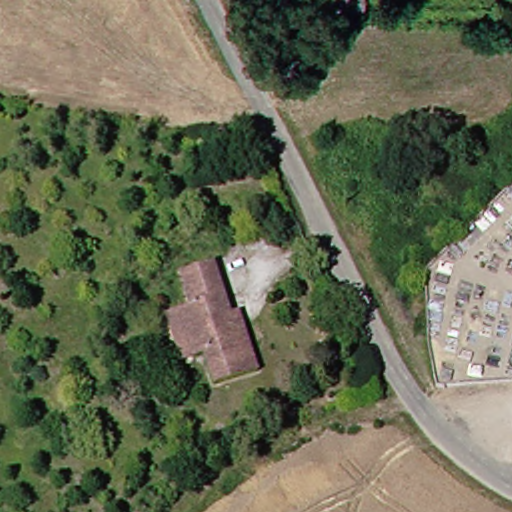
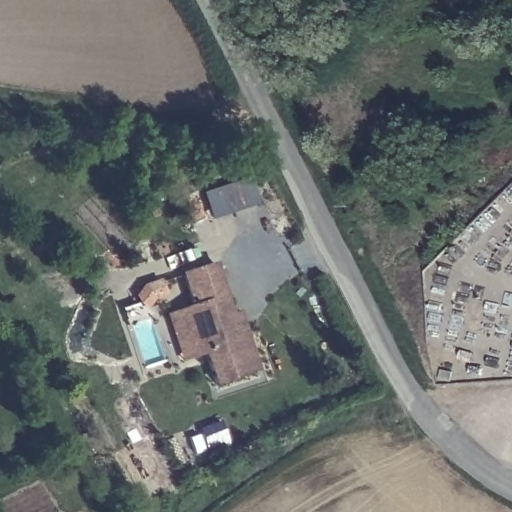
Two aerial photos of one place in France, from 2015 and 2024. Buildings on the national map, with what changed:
unchanged [(318,26),(318,0),(357,0),(357,27),(318,26)]
new [(245,178),(254,203),(207,219),(198,194),(245,178)]
unchanged [(165,334),(161,318),(181,310),(170,276),(203,265),(220,315),(230,311),(236,328),(246,367),(199,385),(185,390),(176,360),(165,334)]

